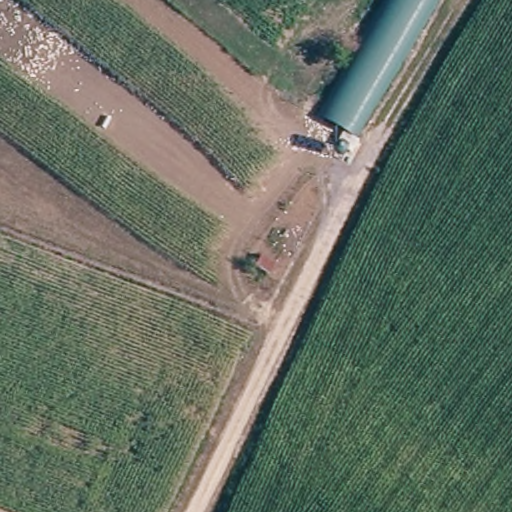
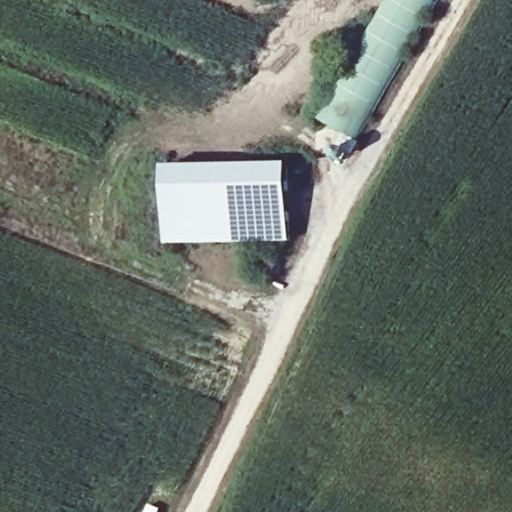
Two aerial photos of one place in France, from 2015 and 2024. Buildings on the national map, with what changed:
unchanged [(317,117),(339,78),(340,77),(385,0),(439,0),(380,102),(357,141),(317,117)]
new [(169,169),(290,166),(291,244),(170,247),(169,169)]

